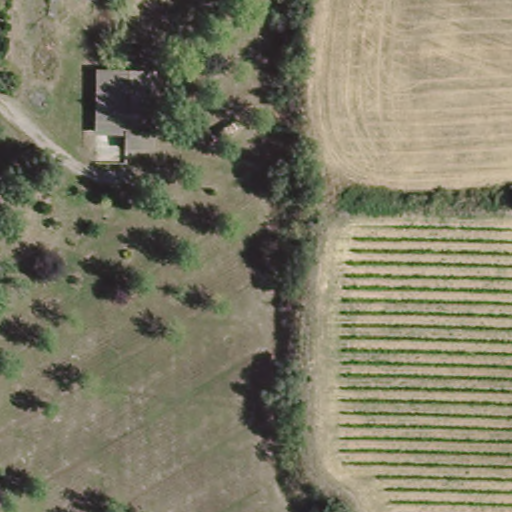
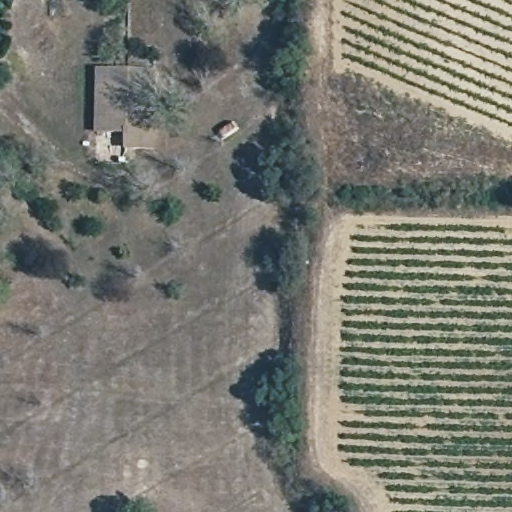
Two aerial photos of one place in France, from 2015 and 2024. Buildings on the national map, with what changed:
unchanged [(127,143),(127,127),(97,126),(97,66),(126,68),(156,68),(154,128),(154,144),(127,143)]

